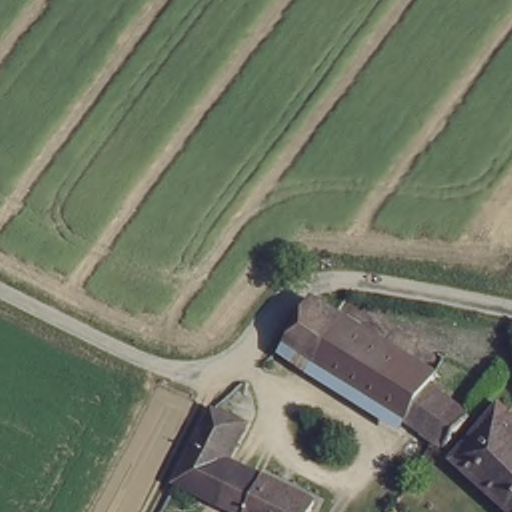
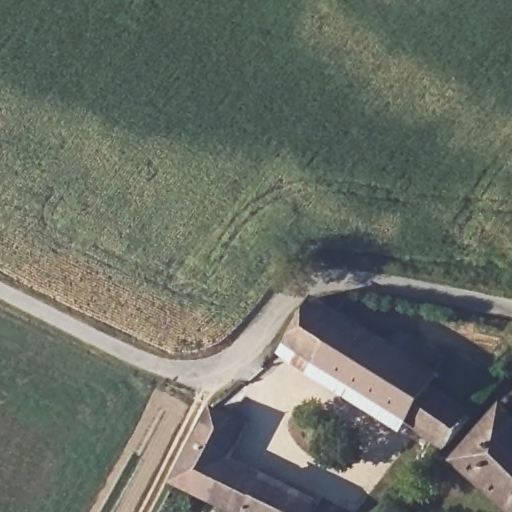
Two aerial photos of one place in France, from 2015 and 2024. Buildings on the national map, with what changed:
unchanged [(283,343),(312,299),(340,316),(323,342),(311,361),(283,343)]
unchanged [(430,368),(423,380),(459,410),(464,414),(440,443),(430,436),(311,361),(323,342),(340,316),(430,368)]
unchanged [(500,406),(512,419),(512,506),(454,455),(500,406)]
unchanged [(193,443),(195,440),(212,409),(236,422),(219,457),(193,443)]
unchanged [(235,512),(173,482),(193,443),(219,457),(256,475),(239,512),(235,512)]
unchanged [(301,512),(239,512),(256,475),(306,501),(301,512)]

